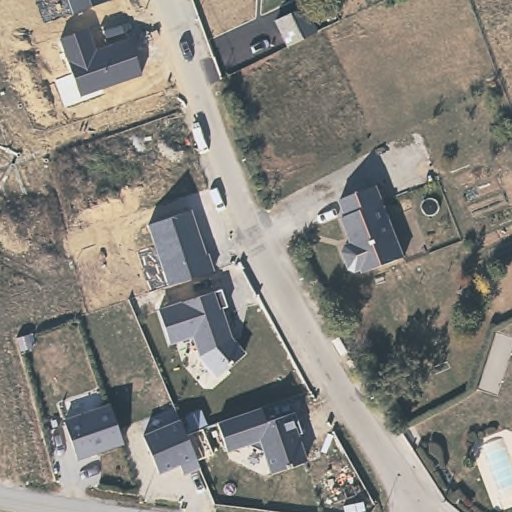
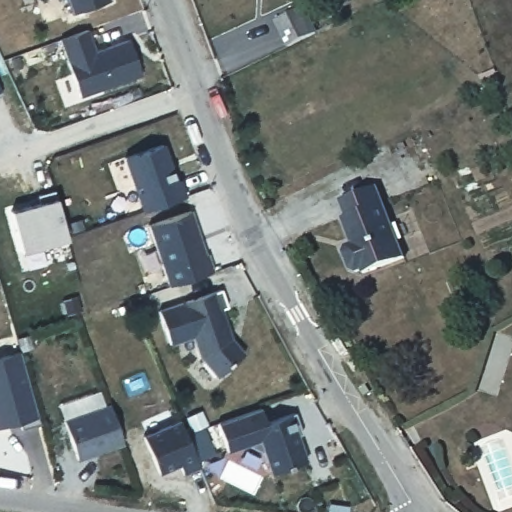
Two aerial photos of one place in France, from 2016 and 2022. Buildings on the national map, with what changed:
unchanged [(71,13),(67,0),(110,0),(110,1),(71,13)]
unchanged [(320,32),(291,47),(277,20),(307,5),(320,32)]
unchanged [(143,78),(82,97),(60,40),(89,30),(95,50),(129,40),(143,78)]
new [(164,144),(178,180),(182,179),(188,196),(146,211),(127,157),(164,144)]
unchanged [(375,185),(403,256),(361,272),(359,268),(354,271),(348,268),(341,251),(344,245),(350,242),(340,217),(344,215),(338,199),(375,185)]
new [(54,197),(66,239),(19,251),(9,211),(54,197)]
unchanged [(169,285),(150,225),(190,211),(208,273),(169,285)]
unchanged [(213,292),(230,340),(243,353),(219,377),(200,358),(194,341),(169,347),(156,310),(213,292)]
new [(43,422),(24,427),(23,420),(0,426),(0,356),(24,350),(43,422)]
unchanged [(109,406),(123,444),(75,462),(61,420),(109,406)]
unchanged [(264,407),(287,413),(305,460),(268,475),(259,443),(227,452),(215,422),(264,407)]
unchanged [(180,422),(204,477),(185,485),(180,471),(153,478),(140,434),(180,422)]

